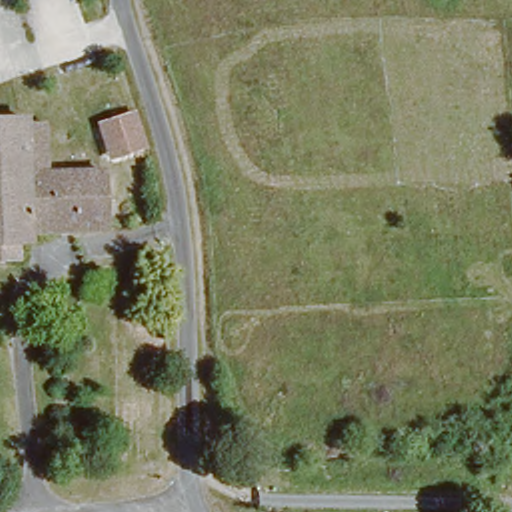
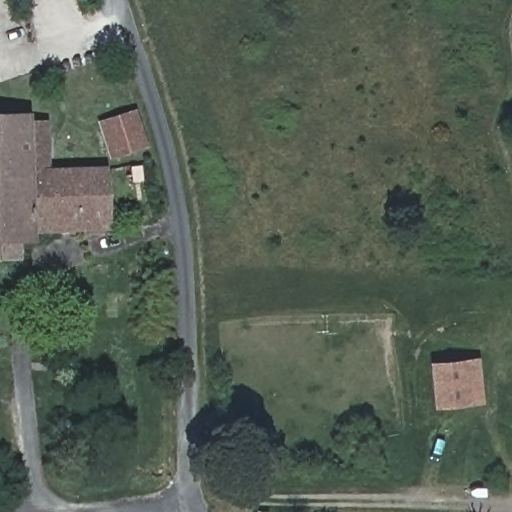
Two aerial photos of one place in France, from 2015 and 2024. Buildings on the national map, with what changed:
unchanged [(129,117),(140,156),(110,166),(97,131),(96,128),(129,117)]
unchanged [(30,121),(45,120),(46,172),(95,169),(96,226),(16,232),(16,243),(6,243),(6,260),(0,260),(0,121),(24,121),(30,121)]
new [(433,405),(430,359),(480,356),(484,401),(433,405)]

